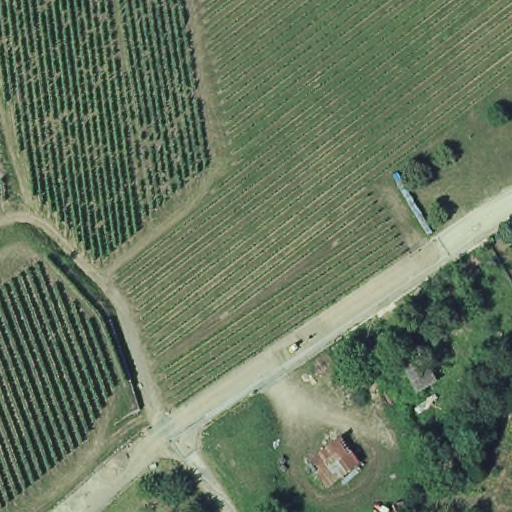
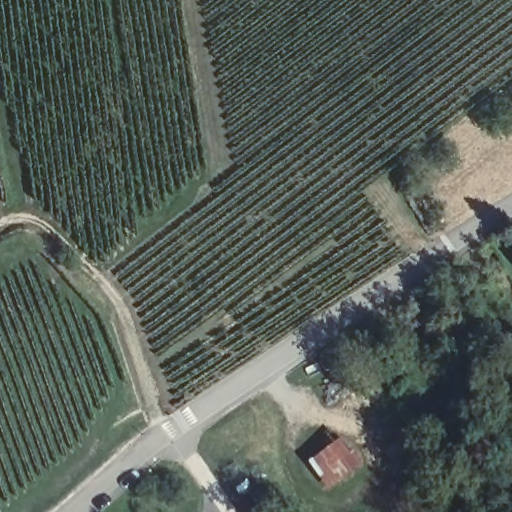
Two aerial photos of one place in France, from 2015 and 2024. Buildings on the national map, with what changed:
unchanged [(415,352),(431,377),(416,387),(400,362),(415,352)]
unchanged [(331,481),(314,459),(342,437),(360,459),(331,481)]

